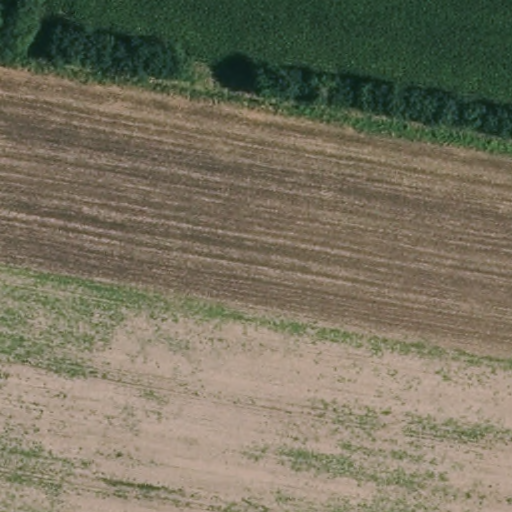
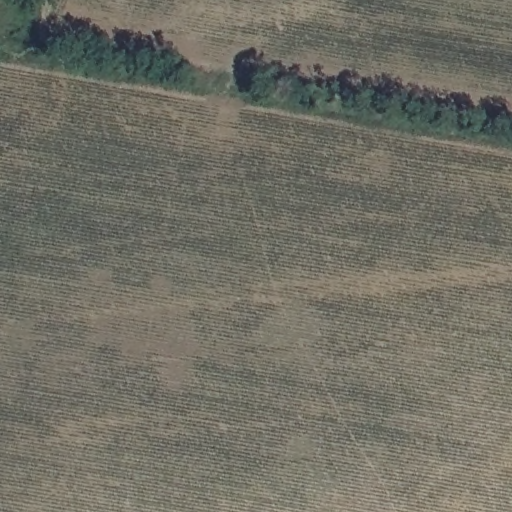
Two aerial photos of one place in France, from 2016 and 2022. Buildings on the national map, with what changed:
[]

